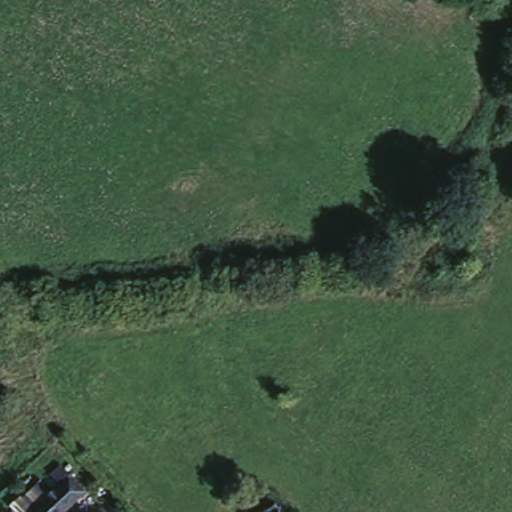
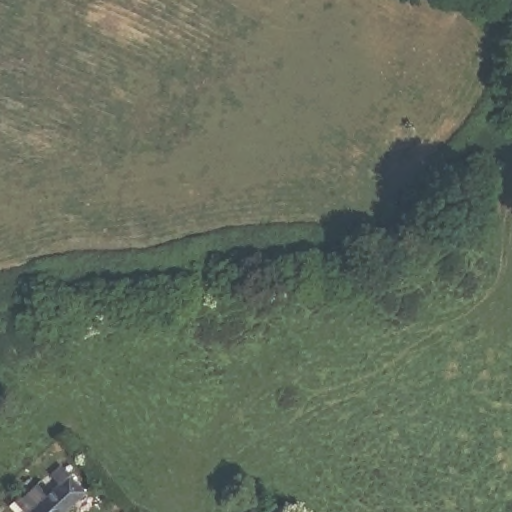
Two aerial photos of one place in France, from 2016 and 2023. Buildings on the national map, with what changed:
unchanged [(67,512),(23,512),(14,504),(35,481),(44,488),(63,471),(86,494),(67,512)]
unchanged [(269,504),(277,512),(261,512),(269,504)]

